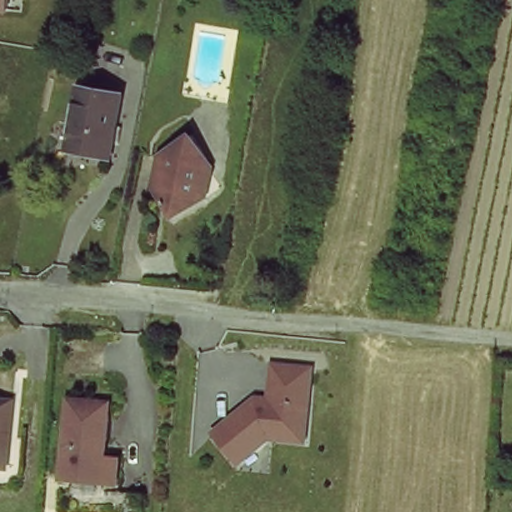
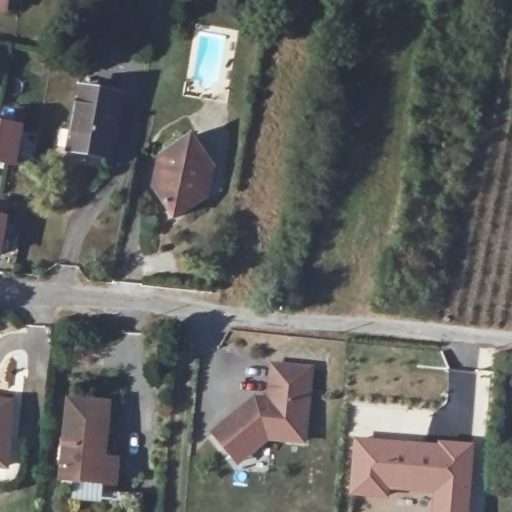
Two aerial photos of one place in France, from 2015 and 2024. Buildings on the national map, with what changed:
unchanged [(5,12),(0,11),(0,0),(6,0),(5,12)]
unchanged [(117,156),(87,151),(75,149),(86,86),(97,87),(128,93),(117,156)]
new [(16,165),(0,162),(0,125),(22,129),(16,165)]
unchanged [(175,219),(156,189),(163,154),(194,134),(215,166),(210,196),(175,219)]
unchanged [(0,256),(0,218),(7,219),(0,256)]
unchanged [(223,453),(208,435),(250,400),(264,401),(267,367),(303,370),(305,370),(298,443),(297,443),(262,440),(251,450),(233,465),(223,453)]
unchanged [(4,435),(2,463),(0,463),(0,395),(12,396),(10,435),(4,435)]
unchanged [(105,460),(117,461),(115,487),(61,481),(69,402),(110,405),(105,460)]
new [(391,451),(390,442),(472,445),(467,512),(353,512),(358,450),(391,451)]
unchanged [(138,498),(142,498),(140,512),(120,512),(122,496),(138,498)]

